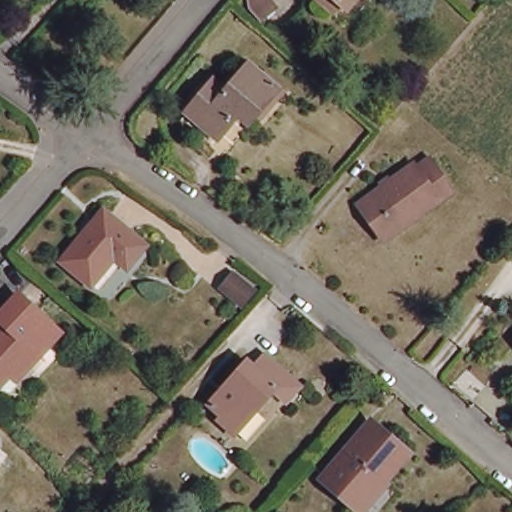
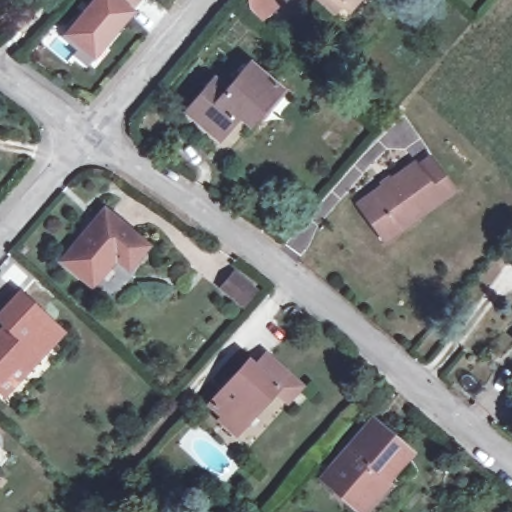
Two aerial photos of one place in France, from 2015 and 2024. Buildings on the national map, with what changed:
new [(135,11),(93,60),(62,34),(91,0),(143,0),(135,11)]
unchanged [(183,121),(210,90),(222,100),(245,73),(274,98),(250,127),(238,116),(213,146),(183,121)]
unchanged [(370,220),(356,201),(411,163),(414,167),(427,157),(450,189),(393,230),(382,238),(370,220)]
unchanged [(52,256),(94,206),(135,241),(117,263),(105,252),(81,280),(52,256)]
unchanged [(222,287),(233,274),(253,292),(242,305),(222,287)]
unchanged [(18,369),(3,387),(0,385),(0,337),(0,338),(13,325),(3,316),(23,295),(63,332),(30,368),(25,374),(18,369)]
unchanged [(210,409),(249,367),(255,372),(265,361),(299,390),(286,405),(273,394),(236,436),(220,423),(222,419),(210,409)]
unchanged [(350,498),(325,476),(370,423),(403,451),(380,478),(385,480),(365,502),(361,508),(350,498)]

